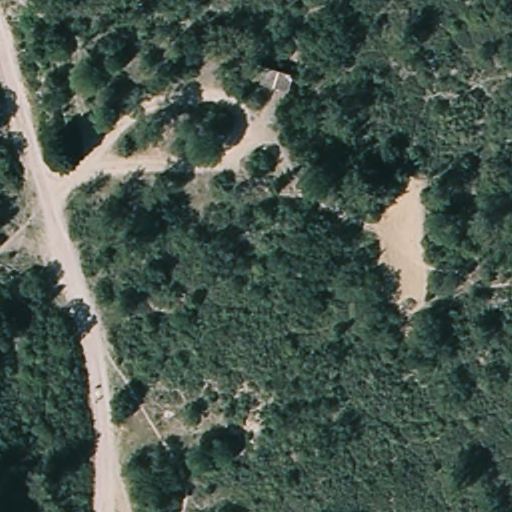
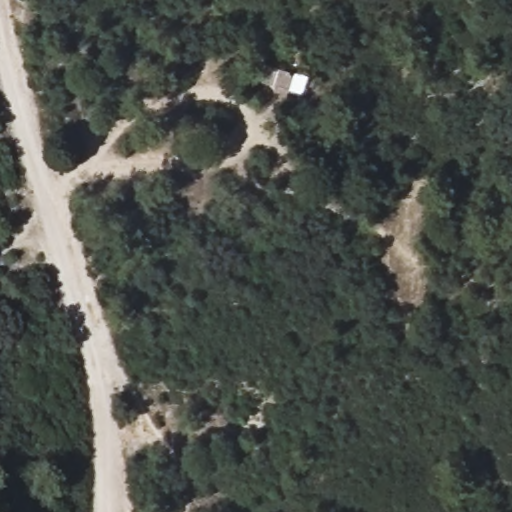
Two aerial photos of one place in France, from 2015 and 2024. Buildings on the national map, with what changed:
unchanged [(246,78),(252,57),(292,73),(286,89),(246,78)]

